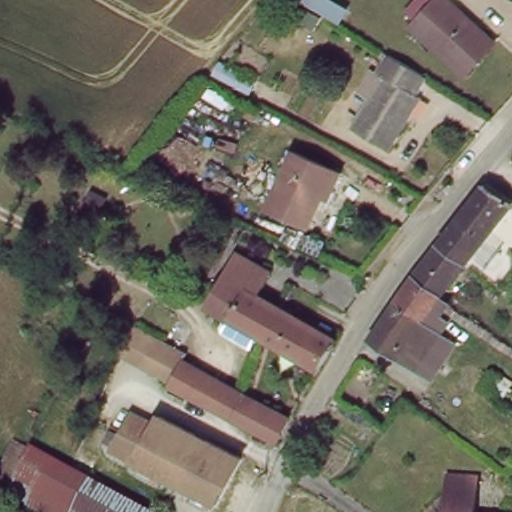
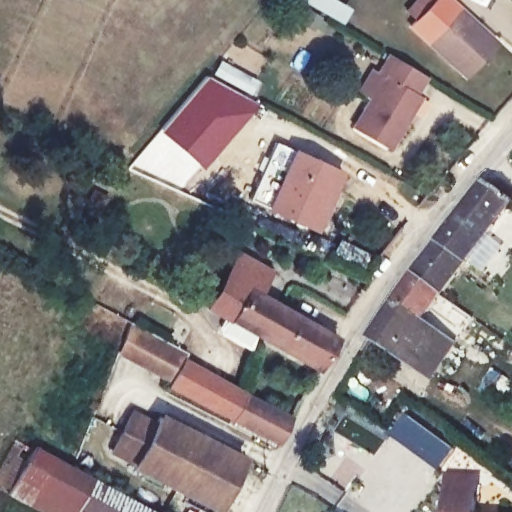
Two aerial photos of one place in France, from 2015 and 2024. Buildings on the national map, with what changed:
new [(338,23),(301,0),(337,0),(348,7),(338,23)]
unchanged [(466,74),(413,27),(438,0),(452,0),(477,23),(497,40),(492,45),(466,74)]
unchanged [(415,97),(424,102),(393,149),(355,128),(385,83),(379,74),(388,54),(427,79),(415,97)]
new [(220,59),(260,81),(251,99),(250,99),(255,103),(200,168),(157,130),(205,73),(209,75),(220,59)]
new [(157,130),(200,168),(182,189),(159,179),(127,168),(157,130)]
unchanged [(265,209),(291,153),(331,169),(342,174),(331,199),(319,194),(304,227),(265,209)]
unchanged [(417,270),(424,262),(493,184),(512,197),(512,213),(444,300),(413,277),(417,270)]
unchanged [(323,369),(266,342),(255,337),(201,311),(223,264),(257,279),(279,287),(272,310),(281,314),(282,314),(342,340),(323,369)]
unchanged [(444,300),(401,358),(370,340),(413,277),(444,300)]
unchanged [(433,381),(401,358),(444,300),(451,305),(443,318),(450,322),(443,334),(457,344),(433,381)]
unchanged [(155,339),(186,354),(172,381),(122,357),(133,329),(155,339)]
unchanged [(257,394),(241,421),(199,401),(179,391),(187,372),(207,383),(212,373),(257,394)]
unchanged [(257,394),(297,416),(293,424),(285,442),(241,421),(257,394)]
unchanged [(192,491),(167,479),(163,486),(140,475),(143,469),(137,465),(138,462),(114,451),(133,412),(157,423),(161,414),(245,454),(221,505),(214,502),(211,509),(189,498),(192,491)]
new [(438,471),(391,437),(407,416),(454,449),(438,471)]
unchanged [(7,494),(15,477),(2,468),(17,433),(36,444),(162,512),(41,512),(7,494)]
unchanged [(449,476),(475,479),(478,479),(475,512),(446,512),(449,476)]

